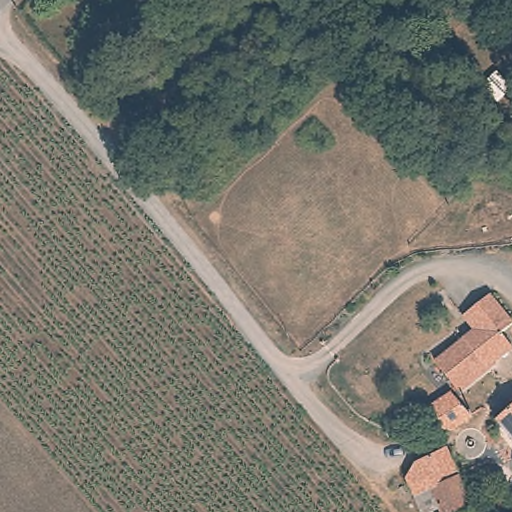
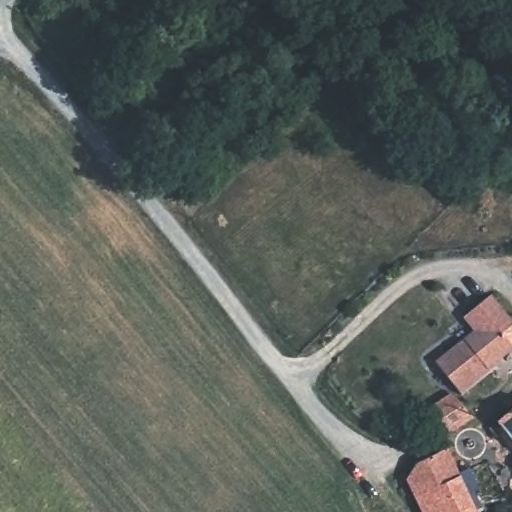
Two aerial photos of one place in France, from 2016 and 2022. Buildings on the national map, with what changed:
unchanged [(475,295),(482,290),(512,323),(512,333),(511,333),(505,339),(512,347),(512,357),(498,368),(501,372),(467,401),(461,394),(452,383),(428,358),(467,327),(455,312),(475,295)]
unchanged [(471,417),(439,432),(432,410),(461,394),(471,417)]
unchanged [(512,438),(495,419),(512,406),(512,438)]
unchanged [(405,477),(411,466),(415,461),(446,447),(460,476),(414,497),(405,477)]
unchanged [(476,512),(442,512),(441,509),(434,512),(421,512),(414,497),(460,476),(476,512)]

